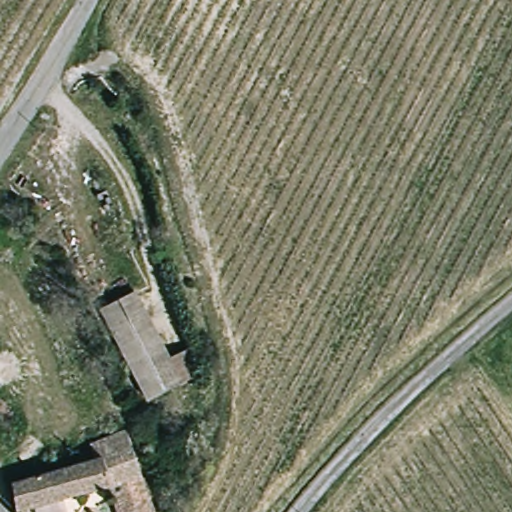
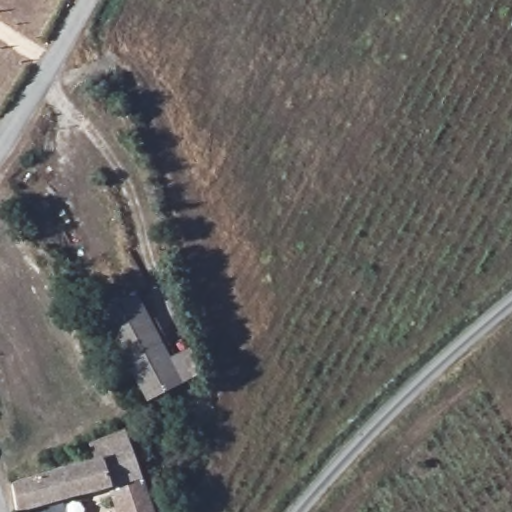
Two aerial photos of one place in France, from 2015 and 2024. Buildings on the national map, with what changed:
unchanged [(178,387),(143,405),(93,315),(130,295),(178,387)]
unchanged [(32,511),(32,512),(15,512),(13,502),(8,488),(92,461),(87,446),(122,434),(154,512),(115,512),(106,490),(32,511)]

